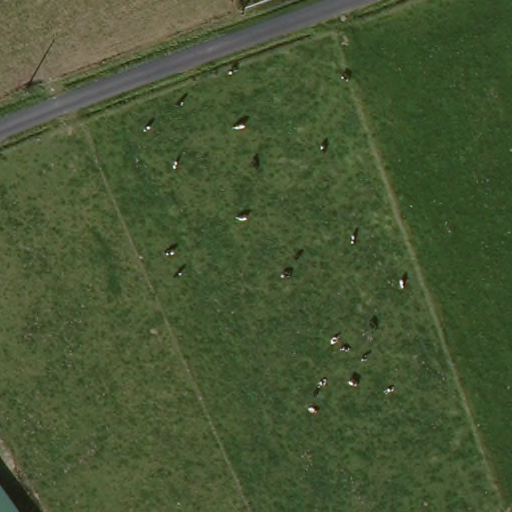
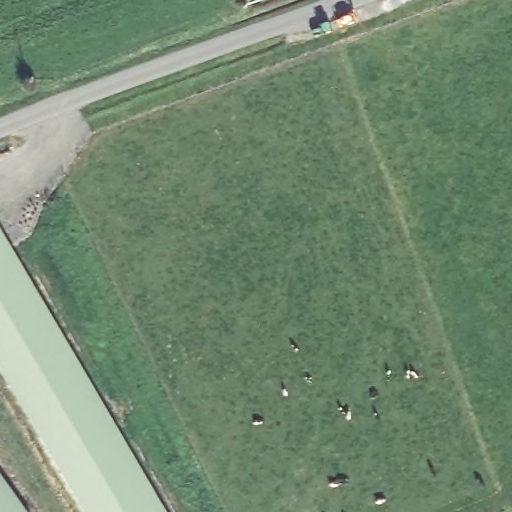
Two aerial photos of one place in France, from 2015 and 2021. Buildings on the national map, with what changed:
new [(163,512),(79,512),(0,378),(0,235),(163,512)]
unchanged [(21,512),(0,512),(0,483),(21,512)]

